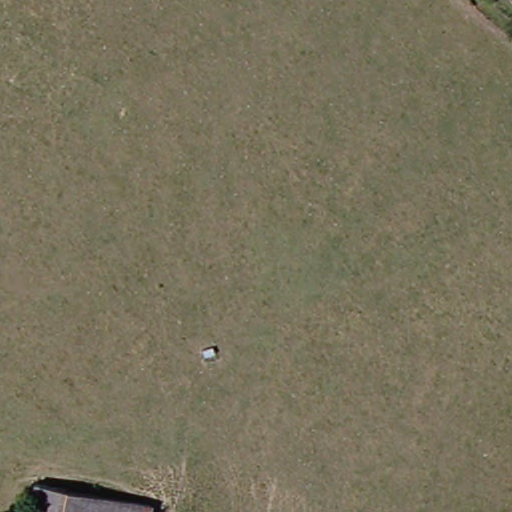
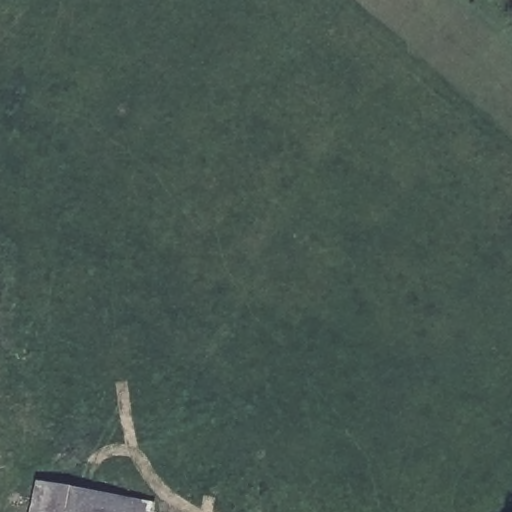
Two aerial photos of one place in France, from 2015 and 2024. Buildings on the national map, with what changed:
unchanged [(67,491),(64,512),(31,512),(36,487),(67,491)]
unchanged [(147,500),(154,502),(154,504),(152,512),(64,512),(67,491),(147,500)]

